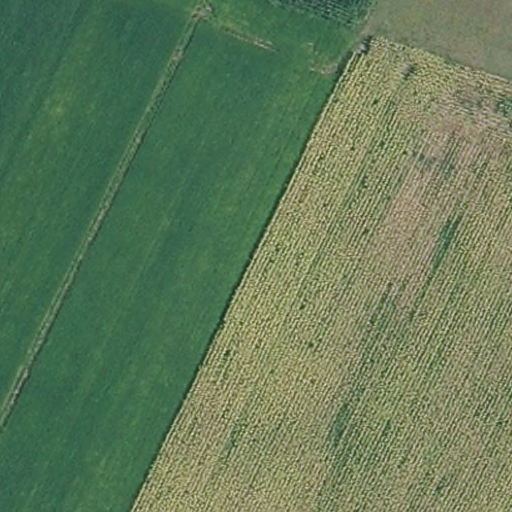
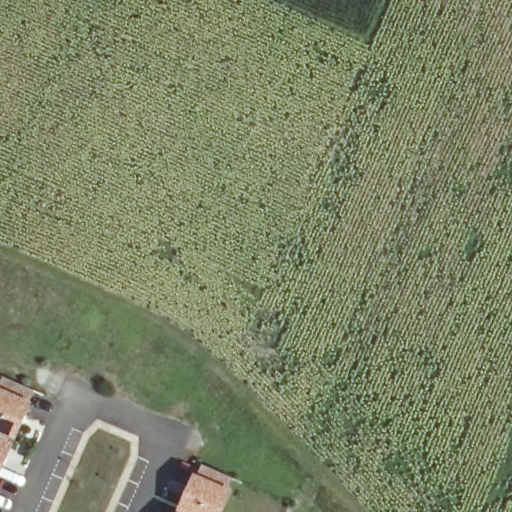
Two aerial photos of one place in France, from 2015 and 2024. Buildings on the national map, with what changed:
new [(0,432),(0,387),(1,387),(4,380),(35,394),(31,401),(34,402),(16,439),(0,432)]
new [(0,438),(16,444),(0,477),(0,438)]
new [(182,512),(180,511),(196,473),(201,475),(204,468),(235,481),(231,489),(235,490),(225,512),(182,512)]

